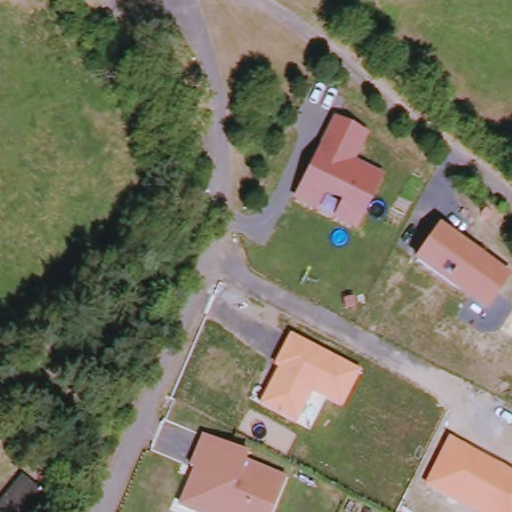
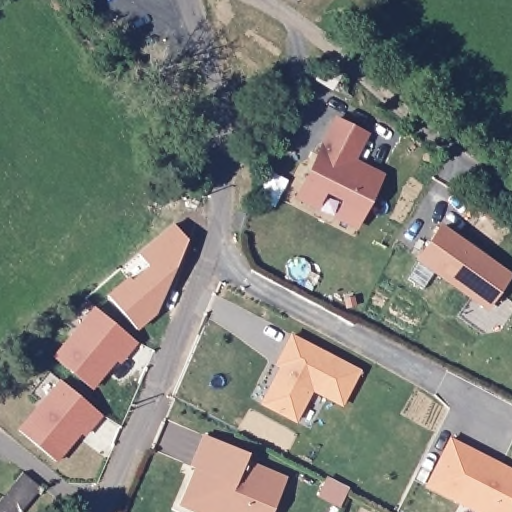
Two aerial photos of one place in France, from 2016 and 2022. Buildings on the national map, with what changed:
unchanged [(367,133),(355,161),(385,174),(357,231),(292,199),(332,118),(367,133)]
new [(186,239),(160,302),(154,314),(137,329),(107,298),(129,278),(132,283),(150,268),(139,254),(174,224),(186,239)]
unchanged [(512,274),(486,313),(412,260),(440,224),(512,274)]
new [(74,330),(66,324),(85,300),(94,307),(137,342),(120,364),(115,361),(93,390),(52,358),(74,330)]
unchanged [(362,369),(342,408),(311,393),(296,425),(258,406),(277,368),(272,366),(290,334),(362,369)]
new [(102,416),(85,437),(82,434),(58,463),(19,430),(60,379),(102,416)]
unchanged [(193,468),(188,466),(201,434),(247,453),(245,460),(285,476),(272,512),(193,512),(178,505),(193,468)]
unchanged [(512,469),(512,512),(473,512),(423,487),(449,438),(512,469)]
unchanged [(47,482),(26,512),(0,512),(0,511),(29,468),(47,482)]

